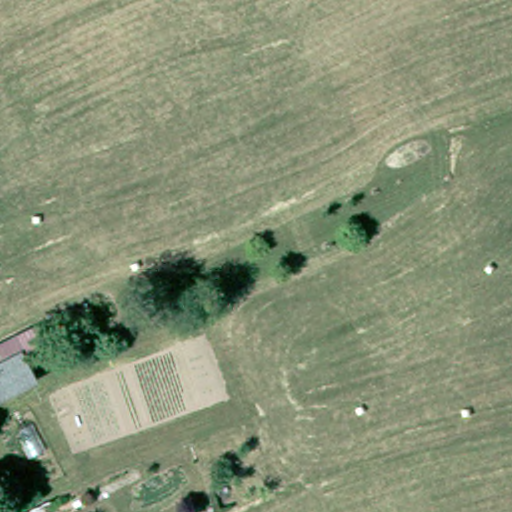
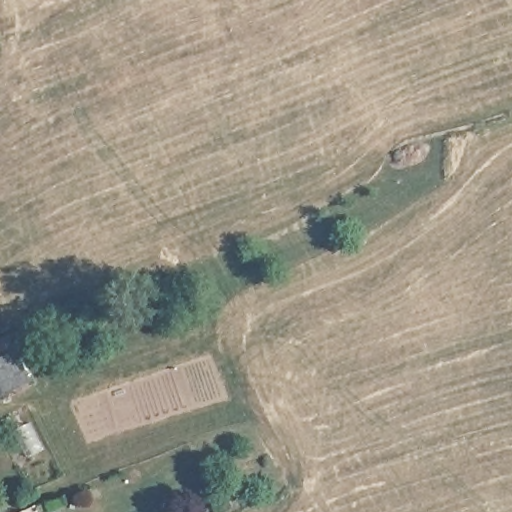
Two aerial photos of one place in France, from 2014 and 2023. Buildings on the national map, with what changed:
unchanged [(0,357),(22,346),(25,352),(37,375),(0,394),(0,357)]

